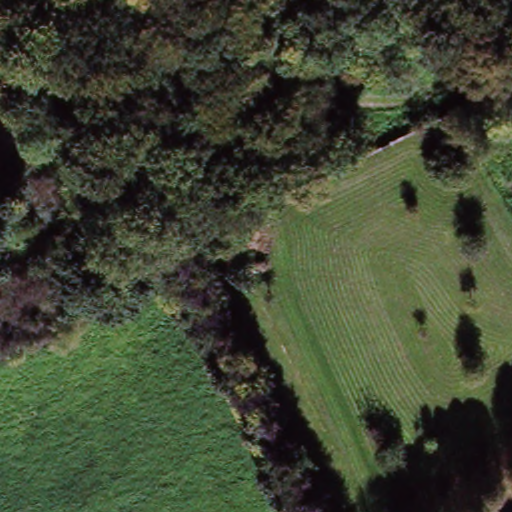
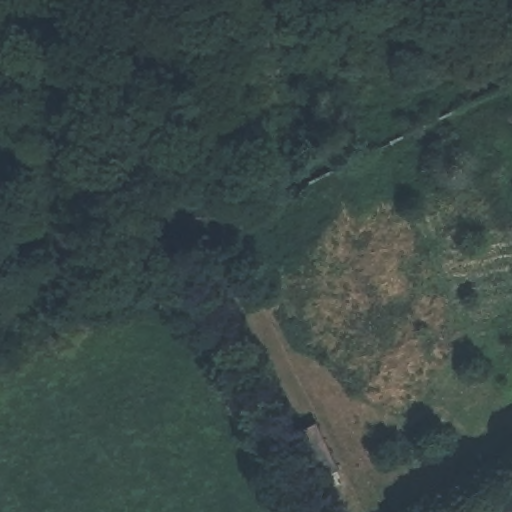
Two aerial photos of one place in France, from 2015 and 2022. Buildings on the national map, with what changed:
unchanged [(387,147),(380,134),(432,107),(440,121),(387,147)]

